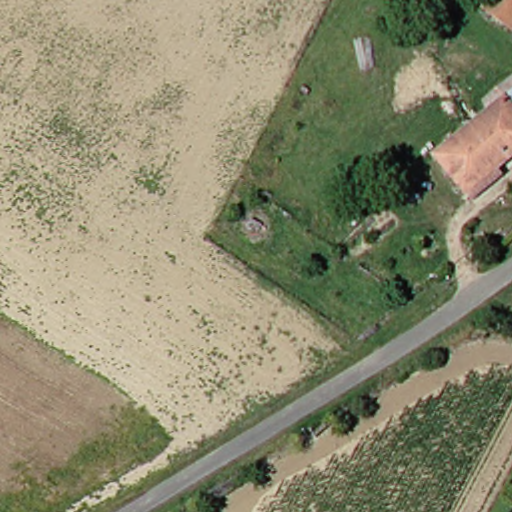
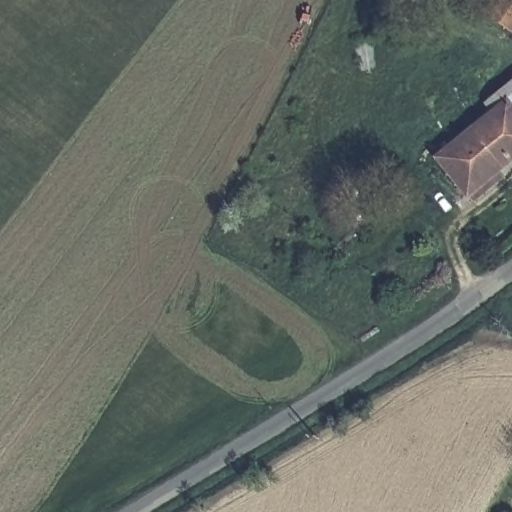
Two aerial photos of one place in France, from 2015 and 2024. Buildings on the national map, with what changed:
unchanged [(480,12),(488,0),(512,0),(512,32),(510,35),(480,12)]
unchanged [(512,32),(512,37),(510,35),(512,32)]
unchanged [(444,148),(512,92),(512,156),(500,165),(482,179),(474,184),(444,148)]

